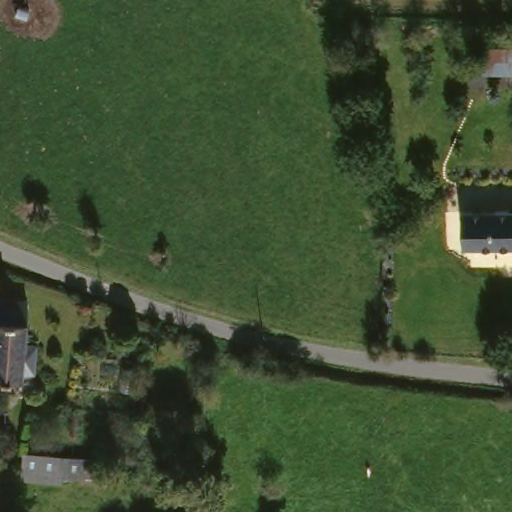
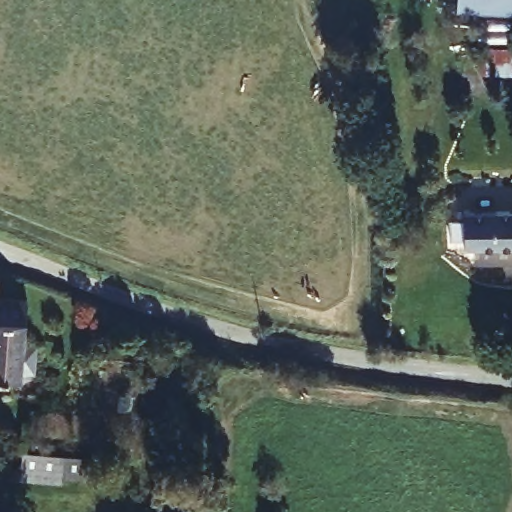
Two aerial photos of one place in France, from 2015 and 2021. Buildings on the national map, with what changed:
new [(512,0),(512,13),(456,10),(457,0),(512,0)]
unchanged [(512,70),(479,69),(480,47),(512,48),(512,70)]
unchanged [(460,242),(460,207),(492,209),(492,244),(460,242)]
unchanged [(512,244),(492,244),(492,209),(512,209),(512,244)]
unchanged [(24,293),(26,293),(22,320),(0,320),(0,291),(24,293)]
unchanged [(34,366),(19,365),(19,372),(0,371),(0,320),(22,320),(21,336),(37,338),(34,366)]
unchanged [(105,456),(102,481),(20,471),(24,446),(105,456)]

